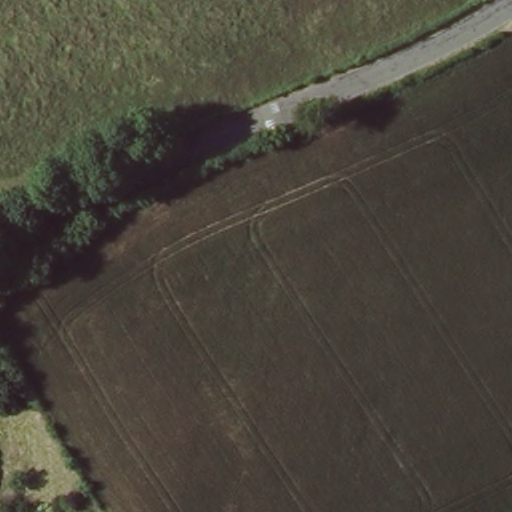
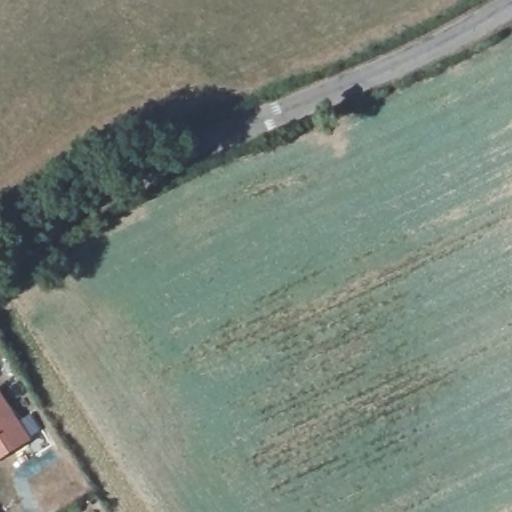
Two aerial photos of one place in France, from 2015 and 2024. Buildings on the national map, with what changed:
new [(32,440),(0,461),(0,391),(32,440)]

